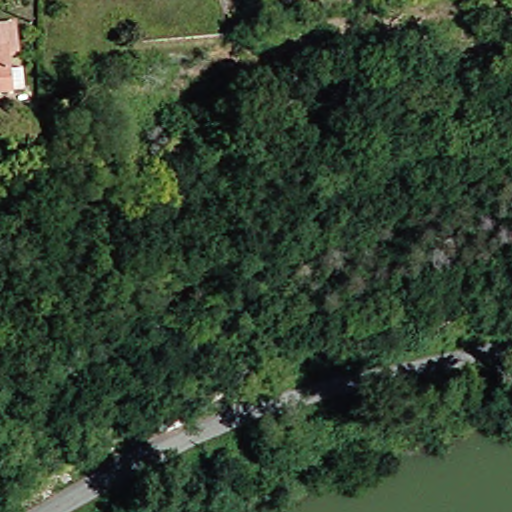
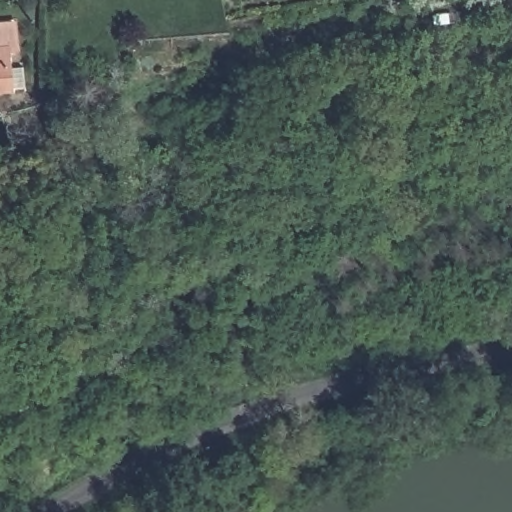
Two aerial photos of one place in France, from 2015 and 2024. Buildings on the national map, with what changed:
unchanged [(11,64),(11,92),(0,92),(0,26),(10,26),(11,64)]

